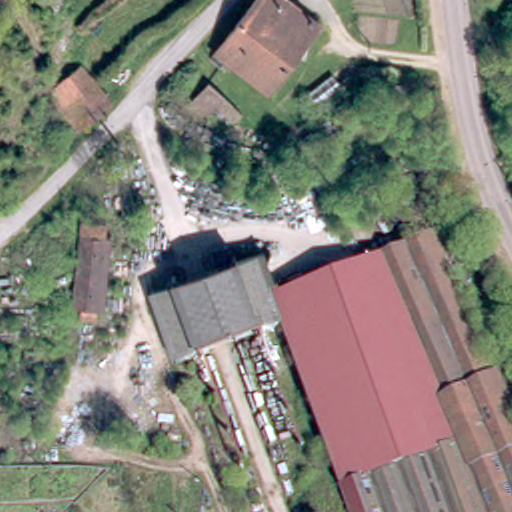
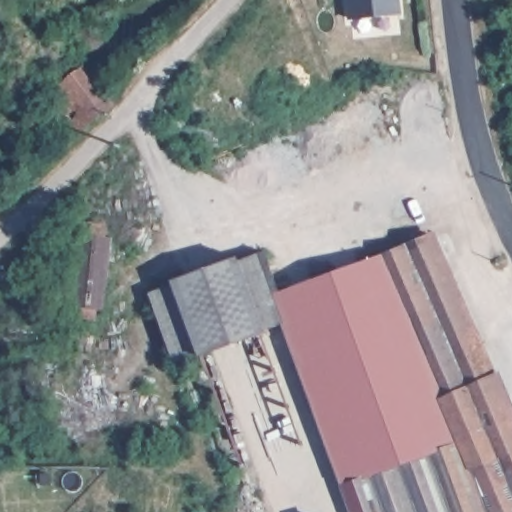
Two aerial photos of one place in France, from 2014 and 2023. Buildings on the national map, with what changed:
demolished [(269,95),(225,64),(215,56),(258,0),(285,0),(321,28),(269,95)]
new [(399,0),(400,14),(347,20),(345,0),(399,0)]
unchanged [(56,121),(67,114),(49,89),(84,65),(113,103),(79,129),(69,137),(56,121)]
unchanged [(111,238),(108,262),(102,313),(95,312),(94,319),(82,318),(83,309),(72,308),(81,225),(106,228),(105,237),(111,238)]
unchanged [(386,262),(386,264),(437,241),(498,382),(502,380),(512,404),(512,512),(353,512),(286,330),(277,302),(283,299),(386,262)]
unchanged [(175,284),(240,260),(242,267),(268,258),(283,299),(277,302),(286,330),(267,338),(260,340),(214,357),(203,361),(180,369),(154,299),(177,291),(175,284)]

